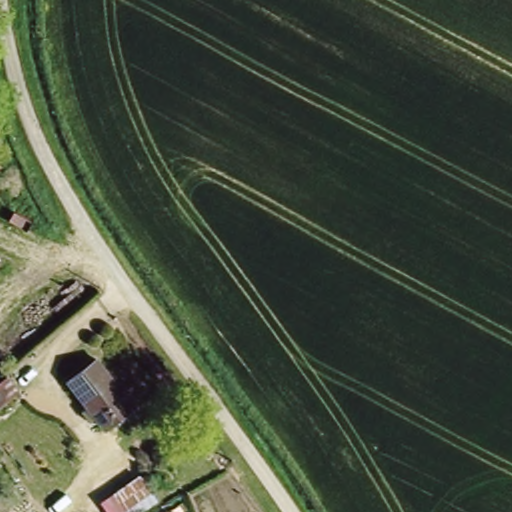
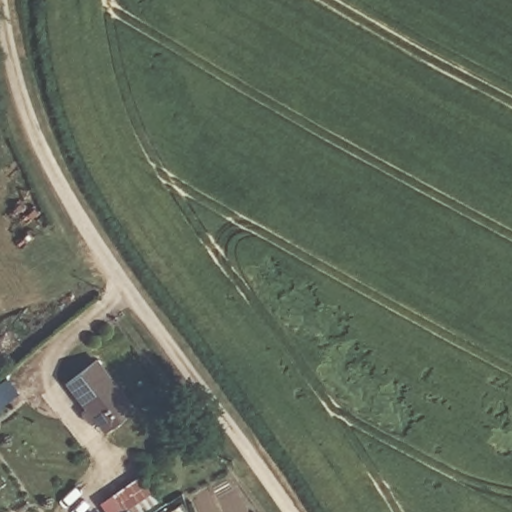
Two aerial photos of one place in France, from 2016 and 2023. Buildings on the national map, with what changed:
unchanged [(89,413),(96,408),(74,380),(103,357),(141,405),(111,428),(101,415),(95,420),(89,413)]
unchanged [(4,376),(17,392),(0,406),(0,380),(4,376)]
unchanged [(156,498),(132,512),(113,512),(109,506),(120,500),(115,488),(138,472),(156,498)]

